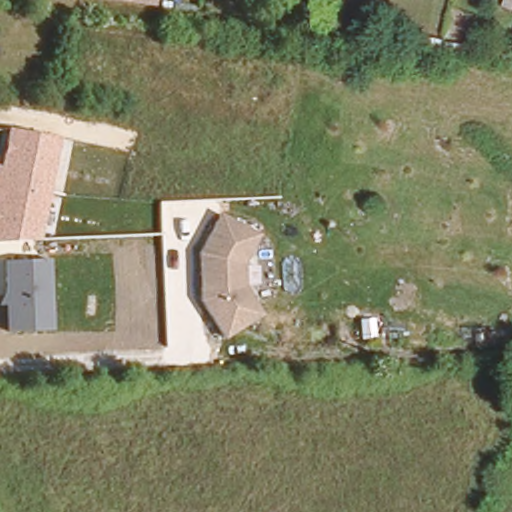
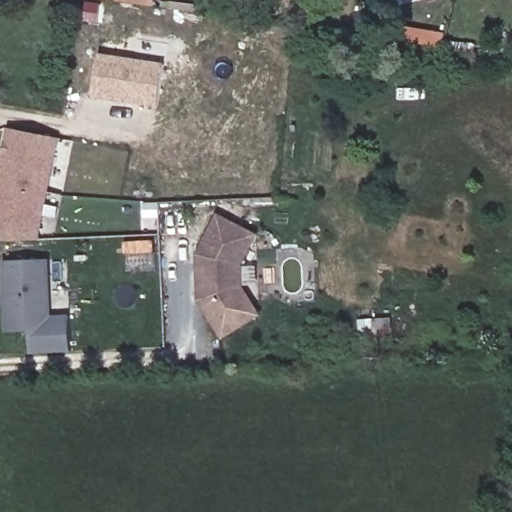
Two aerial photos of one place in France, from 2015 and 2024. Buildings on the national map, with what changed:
new [(105,0),(155,0),(154,7),(105,0)]
new [(93,99),(100,54),(165,64),(159,108),(93,99)]
unchanged [(0,175),(9,127),(59,139),(37,239),(0,240),(0,175)]
unchanged [(220,213),(259,234),(243,263),(244,286),(261,314),(225,339),(198,300),(196,255),(220,213)]
unchanged [(52,327),(6,330),(3,260),(49,260),(52,327)]

